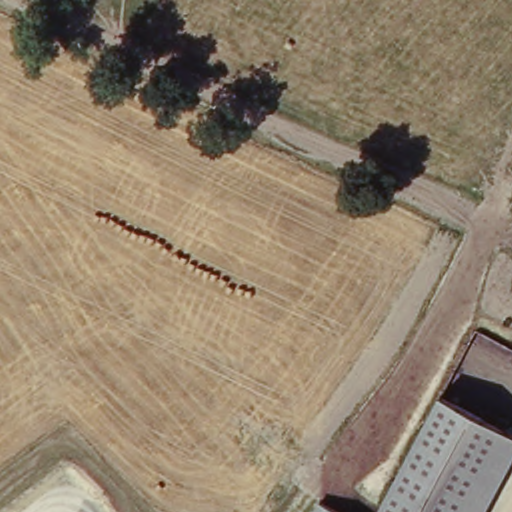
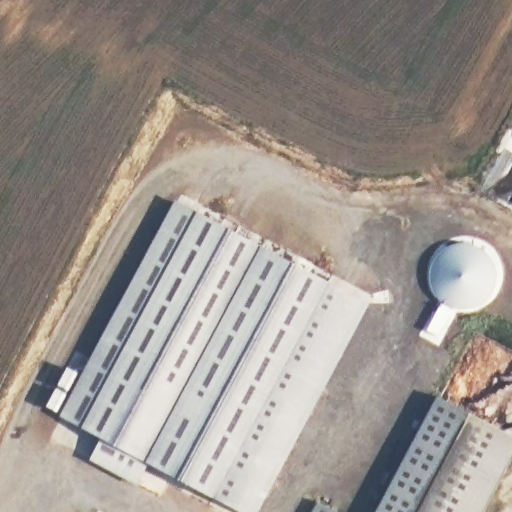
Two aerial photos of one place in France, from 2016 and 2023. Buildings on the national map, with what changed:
new [(137,485),(90,460),(101,437),(60,416),(176,200),(372,304),(260,512),(242,512),(149,463),(137,485)]
new [(512,437),(512,459),(484,512),(378,512),(439,395),(512,437)]
new [(337,512),(313,512),(318,503),(337,512)]
demolished [(334,512),(330,512),(330,510),(334,512)]

